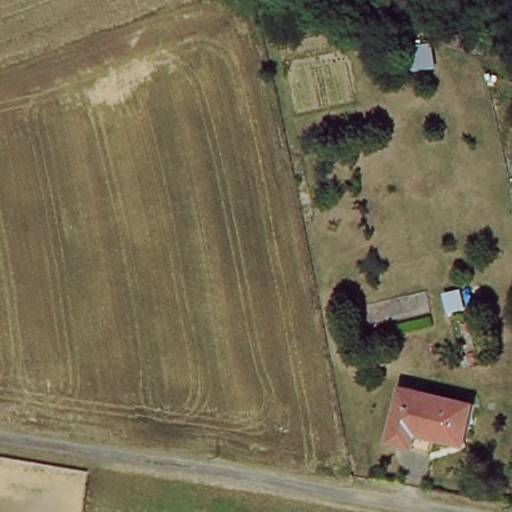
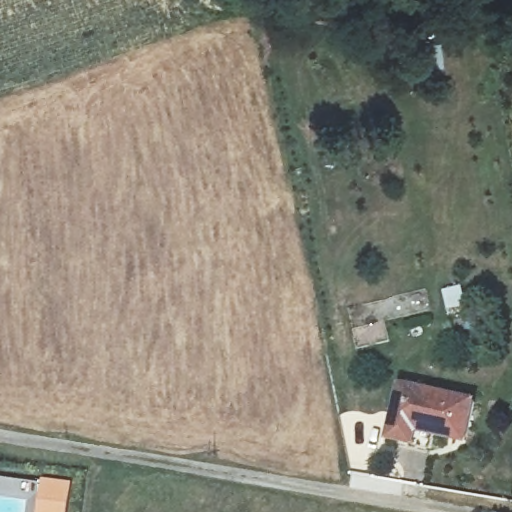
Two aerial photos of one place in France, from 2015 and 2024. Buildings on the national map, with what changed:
unchanged [(405,446),(414,387),(470,393),(464,438),(441,436),(440,451),(405,446)]
new [(70,512),(39,512),(44,480),(74,483),(70,512)]

